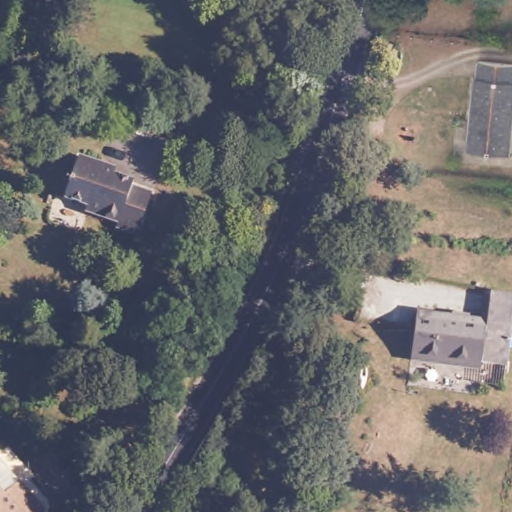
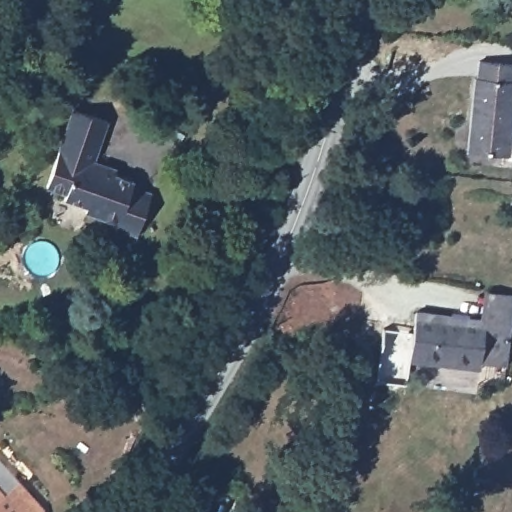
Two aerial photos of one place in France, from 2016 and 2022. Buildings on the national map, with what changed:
unchanged [(477,78),(479,61),(512,64),(512,134),(510,155),(467,151),(475,78),(477,78)]
new [(47,186),(73,107),(107,120),(93,161),(79,156),(66,192),(47,186)]
unchanged [(105,165),(116,169),(114,175),(133,181),(131,187),(151,193),(137,235),(116,227),(118,222),(85,211),(87,206),(64,197),(79,156),(105,165)]
unchanged [(480,367),(410,359),(416,312),(486,321),(490,291),(512,294),(512,316),(511,323),(506,366),(481,362),(480,367)]
unchanged [(20,490),(15,494),(31,512),(0,512),(0,466),(20,490)]

